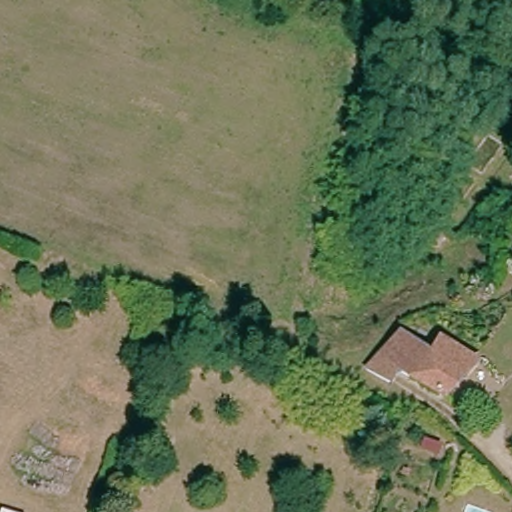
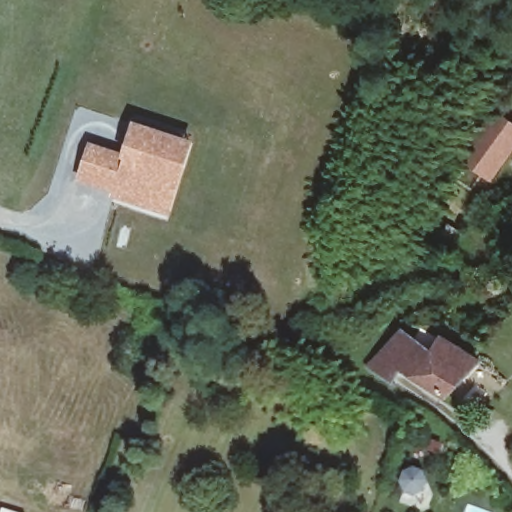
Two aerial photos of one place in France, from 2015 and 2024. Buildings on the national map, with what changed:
new [(498,171),(492,167),(482,181),(455,162),(492,110),(512,125),(512,150),(498,171)]
new [(121,152),(131,119),(193,138),(167,217),(109,199),(112,191),(75,180),(87,141),(121,152)]
unchanged [(447,404),(404,375),(393,388),(371,367),(401,332),(435,355),(441,345),(442,342),(452,347),(466,355),(478,366),(447,404)]

